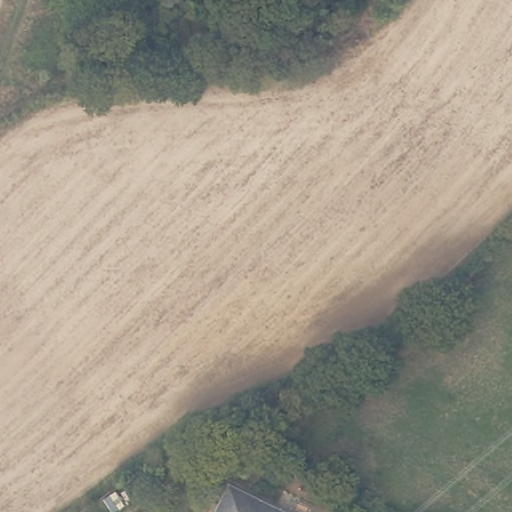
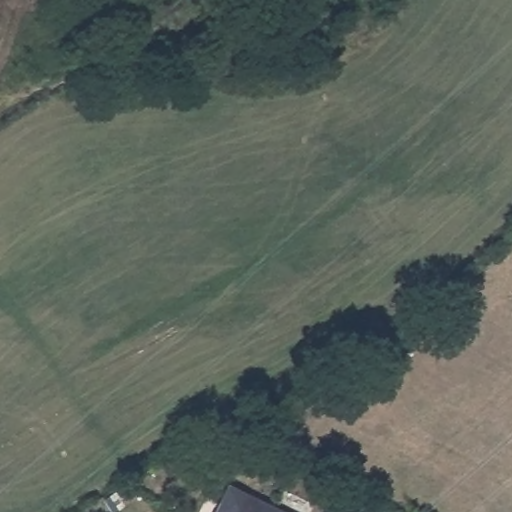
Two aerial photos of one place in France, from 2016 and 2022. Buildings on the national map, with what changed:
unchanged [(219,512),(232,488),(272,512),(219,512)]

